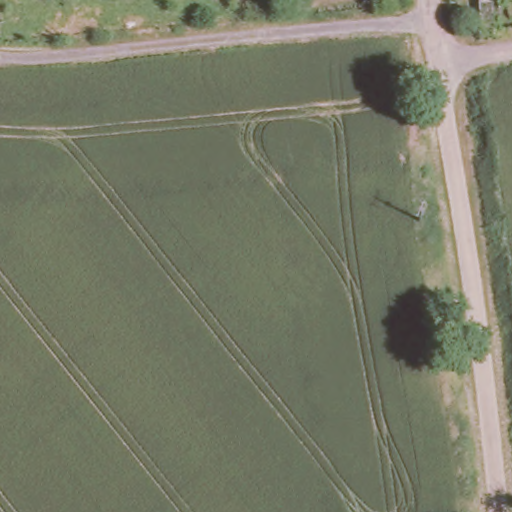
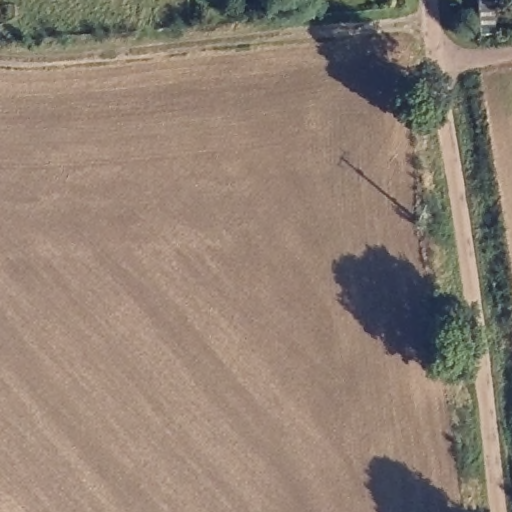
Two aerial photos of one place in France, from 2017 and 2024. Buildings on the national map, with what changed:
unchanged [(490,38),(477,40),(474,0),(487,0),(490,38)]

